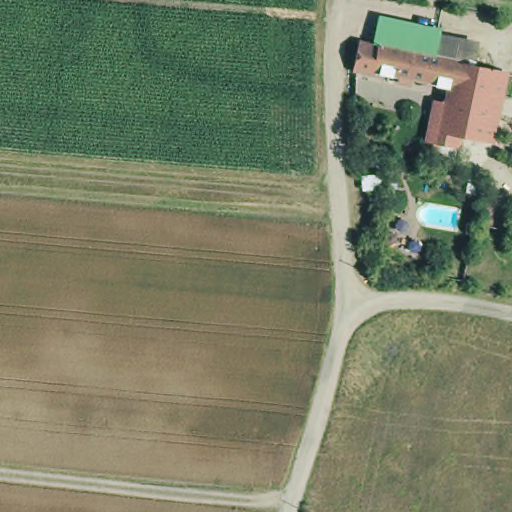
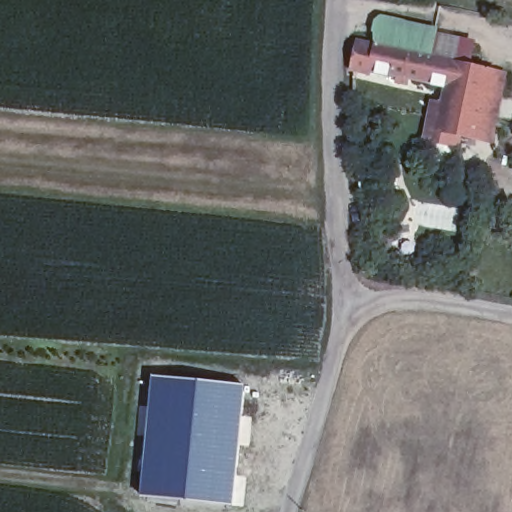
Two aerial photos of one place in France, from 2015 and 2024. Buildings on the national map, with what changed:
unchanged [(435,100),(447,102),(451,83),(434,80),(407,75),(405,82),(397,80),(398,73),(370,67),(368,72),(352,69),(357,44),(367,45),(369,36),(380,39),(386,16),(439,28),(437,50),(450,54),(447,61),(455,63),(490,70),(503,73),(493,128),(490,142),(475,138),(458,135),(456,147),(427,141),(429,129),(432,115),(435,100)]
new [(245,386),(232,509),(143,502),(152,375),(245,386)]

